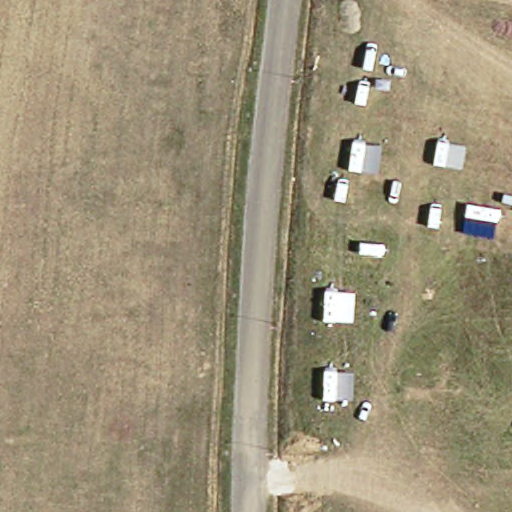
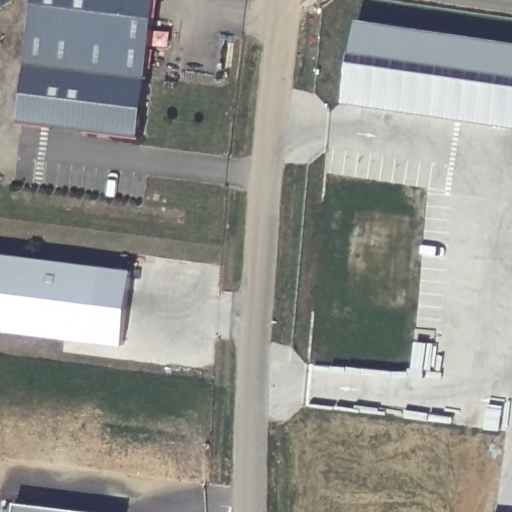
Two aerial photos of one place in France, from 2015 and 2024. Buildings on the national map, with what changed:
new [(37,0),(158,0),(142,135),(22,122),(37,0)]
new [(512,49),(512,125),(346,103),(356,27),(512,49)]
unchanged [(0,330),(0,253),(103,266),(95,341),(0,330)]
new [(103,266),(133,270),(124,346),(95,341),(103,266)]
new [(18,500),(111,512),(16,512),(18,500)]

